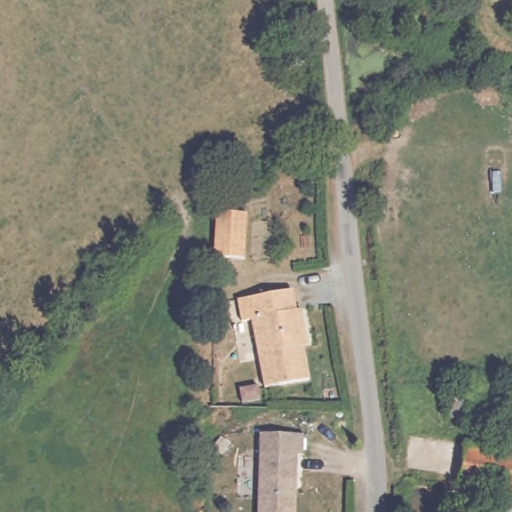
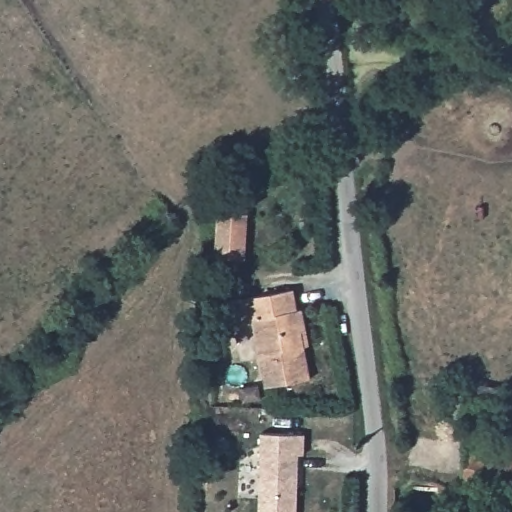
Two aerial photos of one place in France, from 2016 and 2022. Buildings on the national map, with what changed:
unchanged [(251,211),(247,258),(217,256),(221,209),(251,211)]
unchanged [(253,317),(240,318),(238,298),(295,290),(298,310),(304,309),(307,329),(300,330),(306,380),(263,386),(253,317)]
unchanged [(500,431),(451,417),(460,381),(511,395),(500,431)]
unchanged [(500,431),(511,395),(512,391),(512,455),(495,450),(500,431)]
unchanged [(262,430),(307,433),(307,455),(297,455),(294,512),(257,512),(262,430)]
unchanged [(468,443),(495,450),(512,455),(512,497),(457,482),(468,443)]
unchanged [(472,508),(512,510),(512,512),(472,512),(472,508)]

